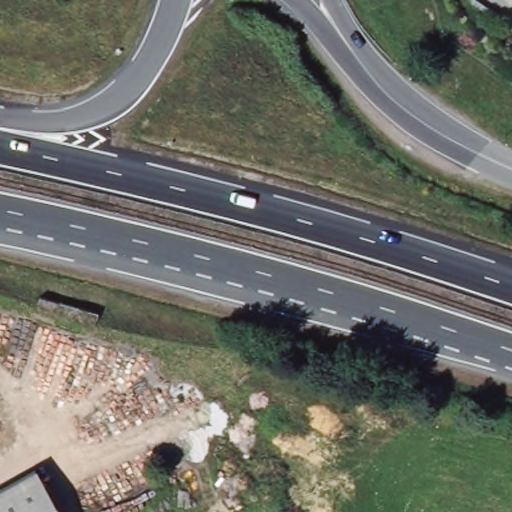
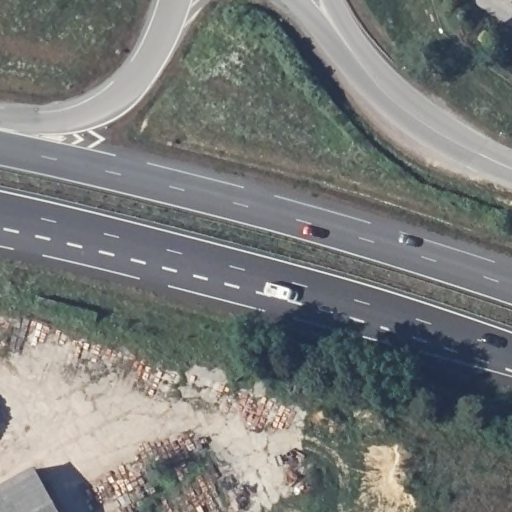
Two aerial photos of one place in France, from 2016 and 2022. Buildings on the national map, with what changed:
unchanged [(34,468),(59,512),(0,512),(0,487),(34,468)]

